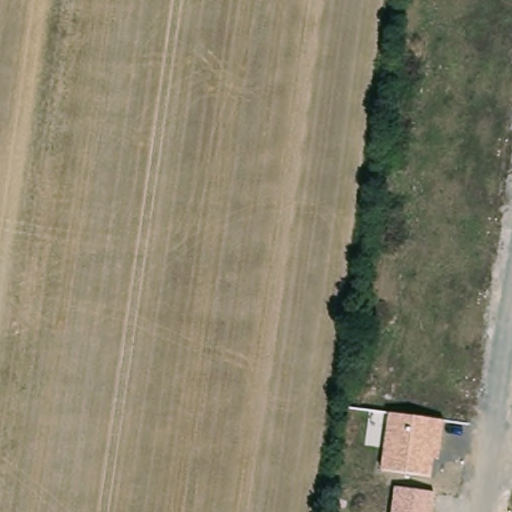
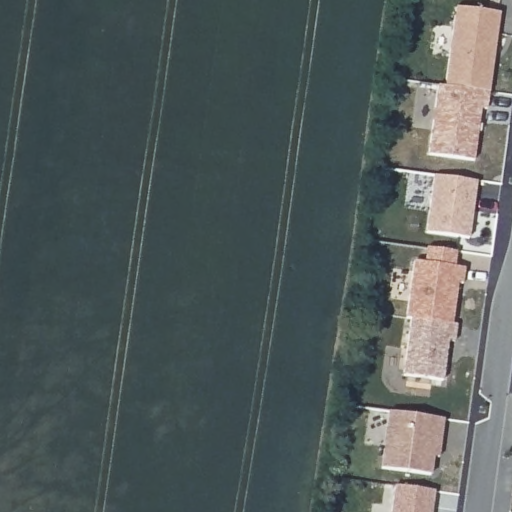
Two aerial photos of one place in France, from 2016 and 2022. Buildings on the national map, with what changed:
new [(473,160),(428,155),(437,86),(445,87),(455,7),(499,13),(489,92),(487,108),(479,109),(473,160)]
new [(434,176),(477,182),(469,238),(426,232),(434,176)]
new [(452,321),(412,315),(411,320),(406,320),(414,262),(425,263),(427,248),(457,252),(455,267),(464,268),(463,283),(456,282),(452,321)]
new [(412,315),(457,322),(455,338),(448,337),(442,377),(404,371),(412,315)]
unchanged [(439,460),(433,458),(430,477),(380,471),(389,412),(444,420),(439,460)]
unchanged [(436,492),(432,512),(391,512),(395,487),(436,492)]

